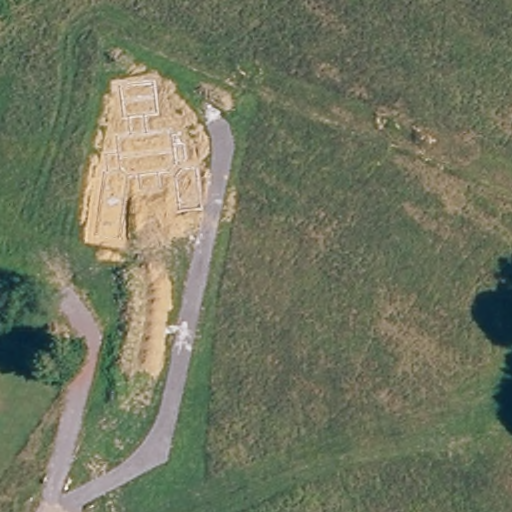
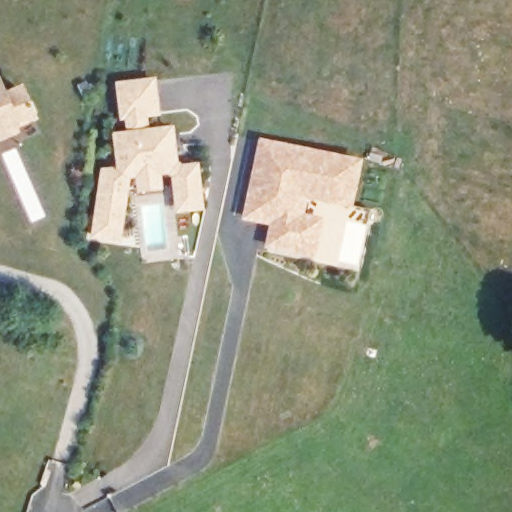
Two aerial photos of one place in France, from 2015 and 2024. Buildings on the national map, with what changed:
new [(94,237),(103,170),(119,170),(114,135),(129,133),(127,121),(123,121),(118,85),(158,80),(163,117),(150,120),(152,131),(176,128),(182,165),(201,164),(206,211),(179,214),(173,176),(163,177),(164,191),(139,194),(138,180),(132,180),(123,242),(94,237)]
new [(19,87),(25,101),(28,100),(31,108),(28,109),(30,114),(10,123),(12,128),(0,133),(0,91),(1,94),(19,87)]
new [(259,141),(288,146),(279,188),(249,183),(259,141)]
new [(313,255),(293,252),(265,246),(270,224),(242,218),(249,183),(279,188),(288,146),(358,160),(350,203),(304,194),(299,217),(319,221),(313,255)]

